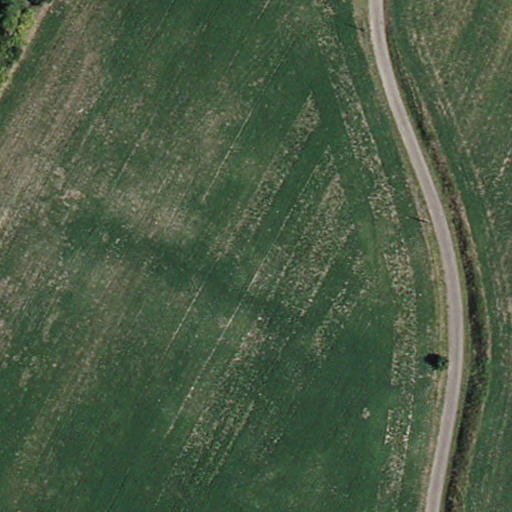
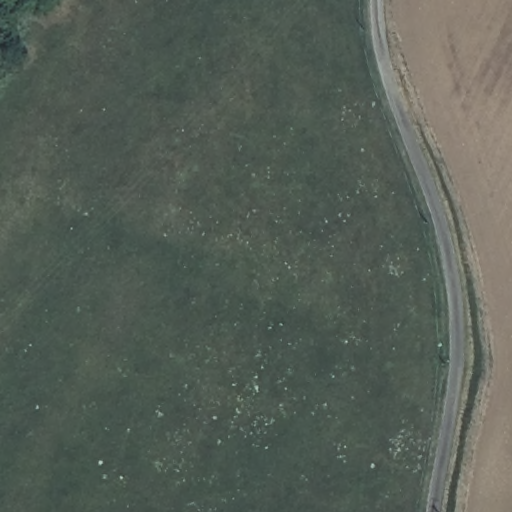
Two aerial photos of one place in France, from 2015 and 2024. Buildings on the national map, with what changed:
[]

